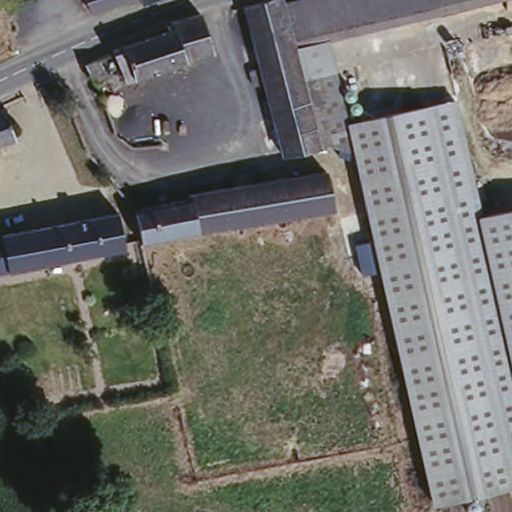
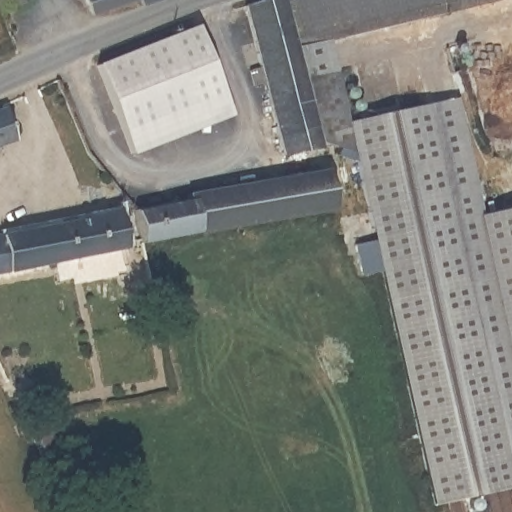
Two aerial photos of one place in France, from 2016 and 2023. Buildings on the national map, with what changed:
unchanged [(133,0),(95,14),(88,0),(133,0)]
unchanged [(144,0),(155,0),(145,4),(144,0)]
unchanged [(286,0),(288,0),(507,0),(295,49),(303,78),(337,70),(355,154),(321,146),(281,158),(240,0),(286,0)]
demolished [(210,52),(123,83),(112,54),(172,33),(171,25),(198,17),(202,24),(210,52)]
new [(232,120),(131,159),(96,70),(197,29),(232,120)]
demolished [(105,78),(94,80),(86,63),(96,59),(105,78)]
unchanged [(512,330),(512,485),(433,504),(355,154),(348,122),(459,98),(512,330)]
unchanged [(5,107),(16,138),(0,143),(0,109),(5,107)]
unchanged [(187,201),(186,194),(325,169),(332,207),(140,242),(132,208),(187,201)]
unchanged [(512,331),(485,214),(512,209),(512,331)]
unchanged [(116,212),(124,247),(9,270),(2,233),(116,212)]
unchanged [(9,270),(0,274),(0,233),(2,233),(9,270)]
unchanged [(44,414),(62,452),(47,459),(29,422),(44,414)]

